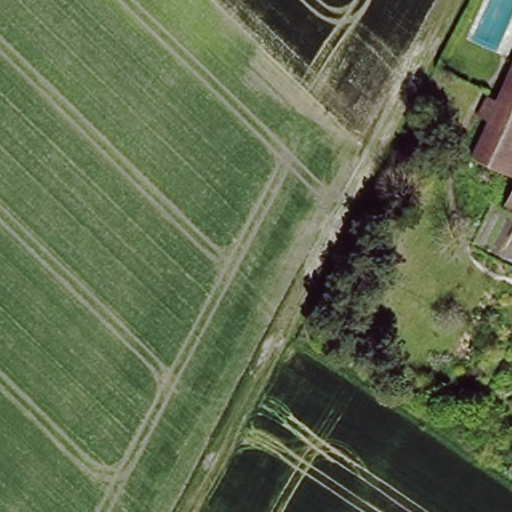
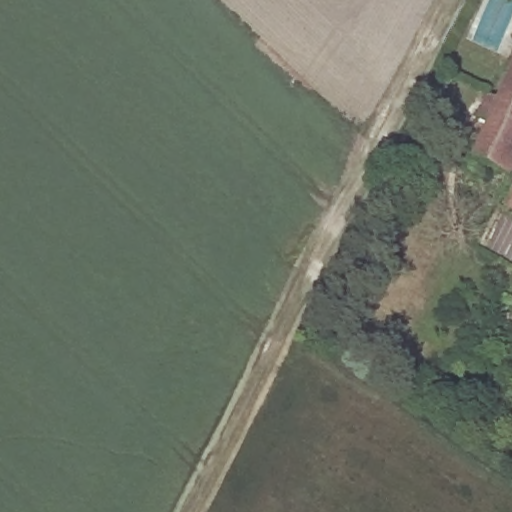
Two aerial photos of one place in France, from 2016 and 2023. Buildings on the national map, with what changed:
unchanged [(512,71),(512,167),(474,149),(491,112),(481,107),(490,86),(502,92),(512,71)]
unchanged [(506,196),(512,184),(512,200),(506,196)]

